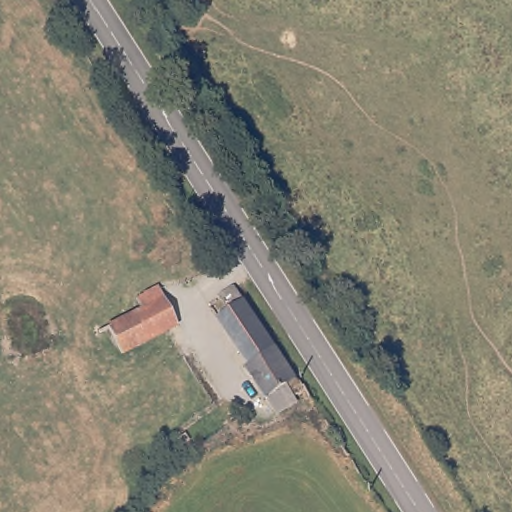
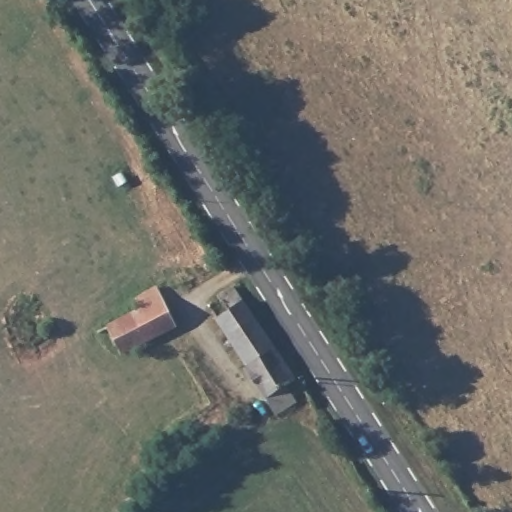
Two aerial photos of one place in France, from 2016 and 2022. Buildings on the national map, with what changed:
unchanged [(300,378),(292,385),(295,390),(273,403),(214,307),(226,300),(218,286),(235,277),(300,378)]
unchanged [(141,317),(137,306),(160,295),(180,331),(124,360),(109,333),(141,317)]

